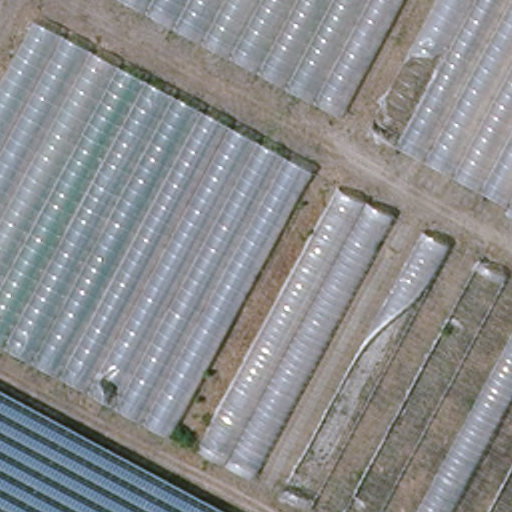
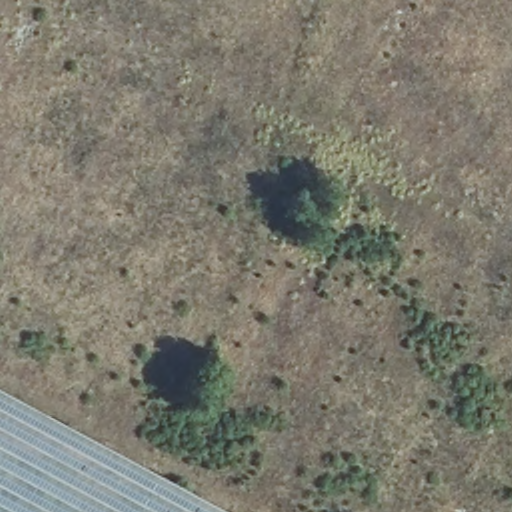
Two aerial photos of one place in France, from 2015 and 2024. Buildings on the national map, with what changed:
demolished [(118,0),(512,0),(512,211),(118,0)]
demolished [(0,82),(34,18),(308,170),(167,434),(0,343),(0,82)]
demolished [(337,185),(391,218),(251,475),(195,446),(337,185)]
demolished [(420,230),(448,245),(308,511),(280,493),(420,230)]
demolished [(502,273),(376,512),(343,512),(477,259),(502,273)]
demolished [(448,512),(416,512),(512,328),(512,391),(448,512)]
unchanged [(0,512),(0,387),(231,512),(0,512)]
demolished [(489,512),(512,467),(512,512),(489,512)]

